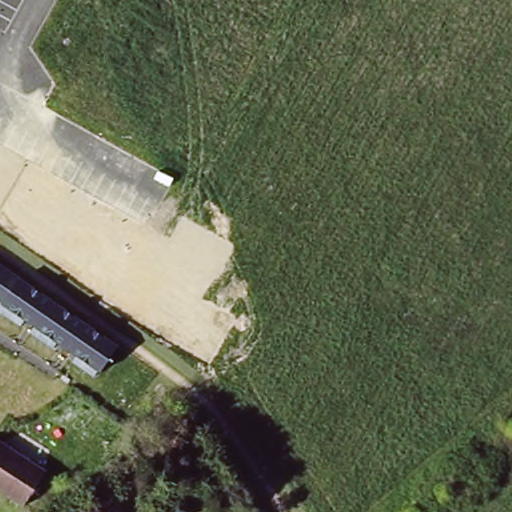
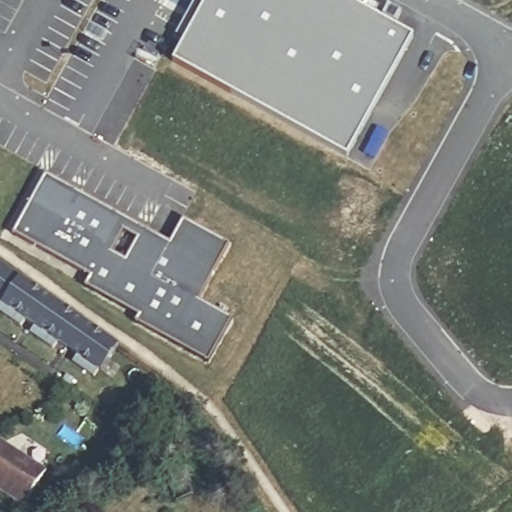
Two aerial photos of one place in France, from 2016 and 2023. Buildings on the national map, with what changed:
new [(346,0),(413,37),(347,157),(172,61),(206,0),(346,0)]
new [(46,172),(172,242),(186,218),(234,245),(202,300),(237,319),(212,362),(136,321),(140,315),(85,285),(90,275),(11,232),(46,172)]
unchanged [(104,374),(0,305),(0,266),(119,347),(104,374)]
unchanged [(30,509),(0,491),(0,440),(50,470),(30,509)]

